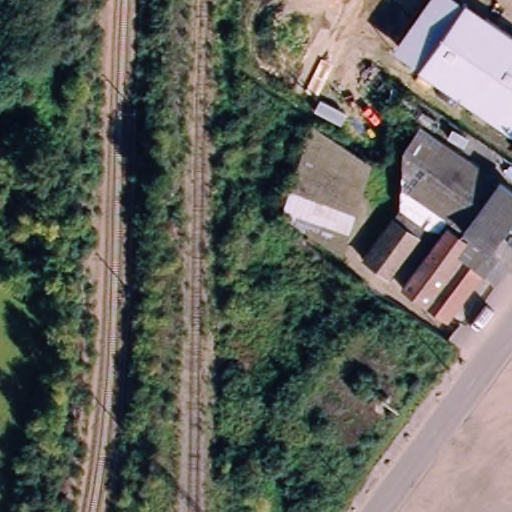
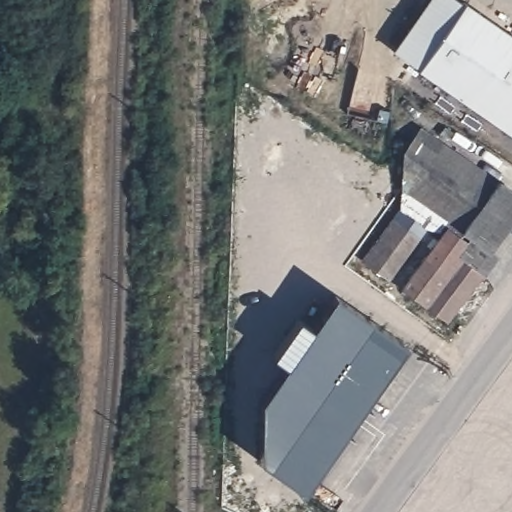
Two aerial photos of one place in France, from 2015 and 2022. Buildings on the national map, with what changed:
unchanged [(426,0),(464,0),(512,33),(512,135),(417,69),(391,50),(426,0)]
unchanged [(415,126),(490,182),(492,181),(512,196),(512,203),(480,246),(414,197),(406,192),(397,149),(415,126)]
demolished [(362,159),(340,252),(280,215),(312,129),(362,159)]
unchanged [(440,320),(396,288),(440,229),(408,205),(414,197),(480,246),(489,253),(440,320)]
unchanged [(423,229),(390,274),(386,280),(360,262),(398,210),(423,229)]
new [(406,347),(365,406),(369,410),(368,410),(364,407),(345,433),(350,436),(350,437),(345,433),(302,493),(258,462),(259,400),(283,365),(270,356),(296,319),(310,328),(332,295),(406,347)]

